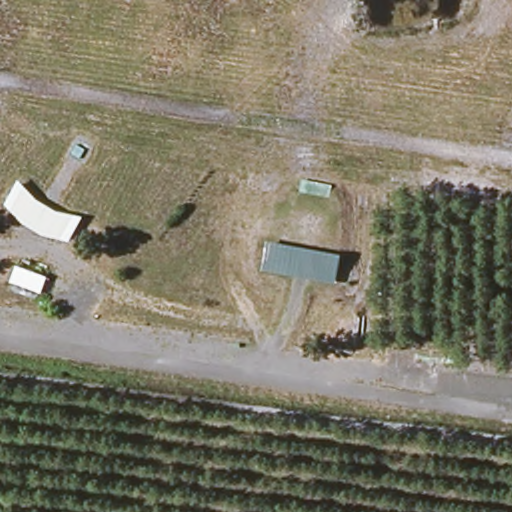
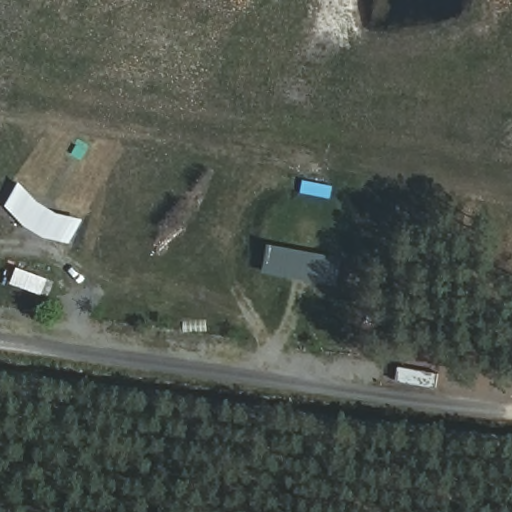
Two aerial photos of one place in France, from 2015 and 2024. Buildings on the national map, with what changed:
unchanged [(71,243),(42,237),(24,226),(6,207),(19,181),(37,203),(57,216),(82,219),(71,243)]
unchanged [(262,275),(270,245),(342,259),(336,289),(262,275)]

